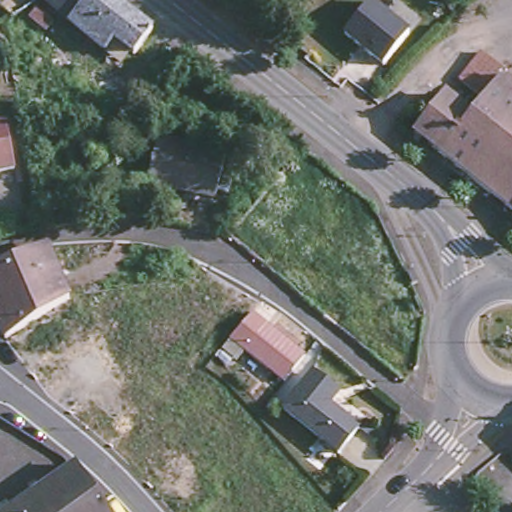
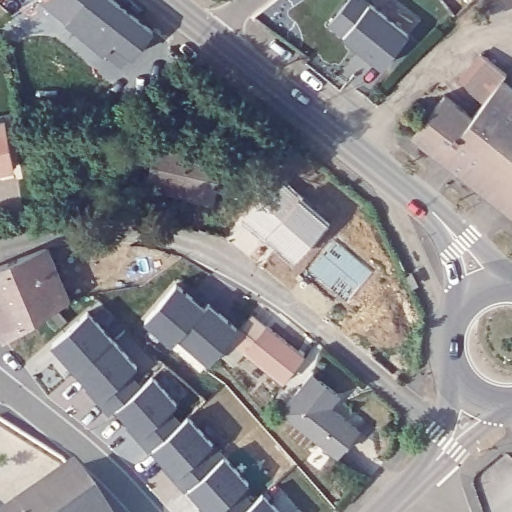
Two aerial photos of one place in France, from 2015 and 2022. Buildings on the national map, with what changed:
unchanged [(63,11),(49,0),(74,0),(63,11)]
unchanged [(74,0),(116,0),(148,26),(129,49),(108,32),(100,42),(63,11),(74,0)]
unchanged [(408,33),(394,50),(383,64),(378,60),(344,32),(369,1),(408,33)]
unchanged [(449,76),(472,47),(498,68),(493,73),(475,95),(449,76)]
unchanged [(493,73),(512,89),(512,213),(433,151),(464,109),(475,95),(493,73)]
unchanged [(433,151),(405,129),(436,89),(464,109),(433,151)]
unchanged [(5,164),(0,165),(0,135),(5,164)]
unchanged [(223,160),(213,200),(146,182),(156,141),(223,160)]
unchanged [(0,290),(0,260),(48,241),(53,254),(58,266),(0,290)]
unchanged [(0,321),(0,290),(58,266),(69,294),(38,313),(5,333),(0,321)]
new [(223,349),(221,347),(209,362),(179,336),(172,343),(144,319),(178,281),(206,304),(208,300),(241,329),(223,349)]
new [(139,363),(134,368),(148,379),(154,374),(178,400),(174,404),(181,420),(156,444),(150,449),(127,424),(128,421),(116,410),(114,408),(108,413),(85,387),(88,384),(51,344),(88,310),(139,363)]
unchanged [(253,316),(305,357),(283,382),(243,351),(235,359),(223,349),(253,316)]
unchanged [(332,390),(322,403),(351,426),(331,452),(277,408),(306,370),(332,390)]
new [(211,441),(205,447),(216,460),(224,455),(248,481),(241,488),(253,500),(262,492),(281,512),(214,512),(189,486),(186,489),(174,477),(178,474),(156,444),(181,420),(188,416),(211,441)]
unchanged [(69,468),(73,471),(100,512),(40,512),(28,495),(41,486),(69,468)]
unchanged [(40,512),(5,512),(28,495),(40,512)]

